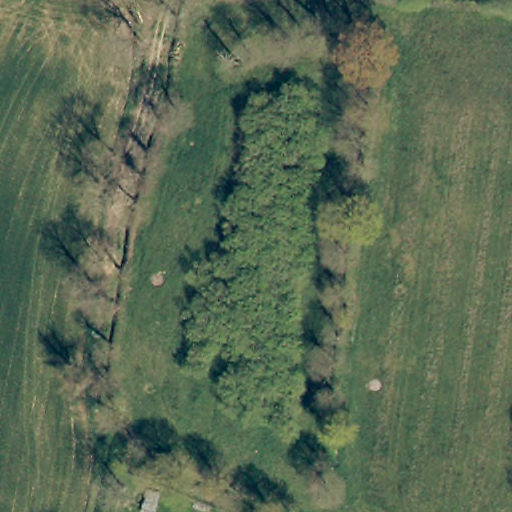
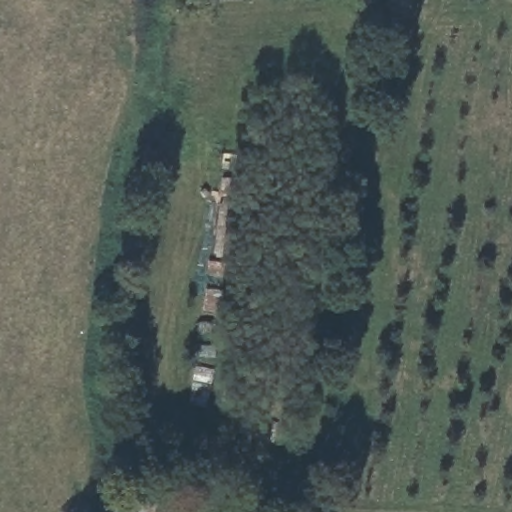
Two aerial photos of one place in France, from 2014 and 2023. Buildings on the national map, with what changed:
[]

